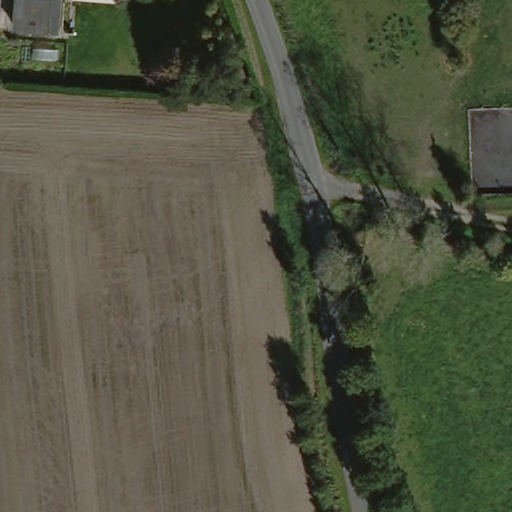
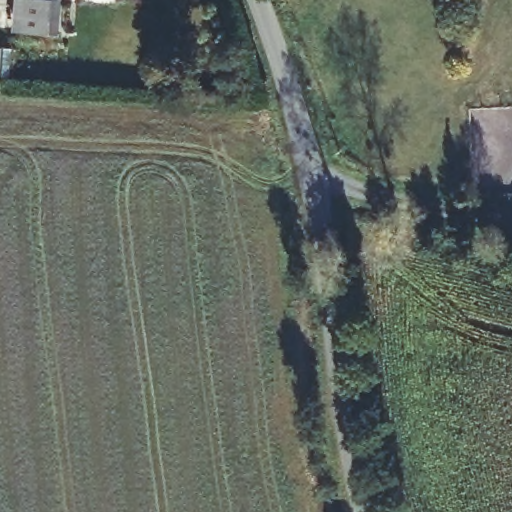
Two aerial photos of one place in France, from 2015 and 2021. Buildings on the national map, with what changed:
unchanged [(24,27),(25,0),(70,0),(69,30),(24,27)]

